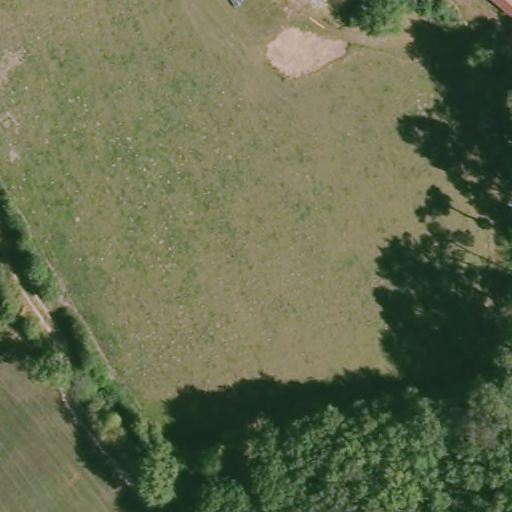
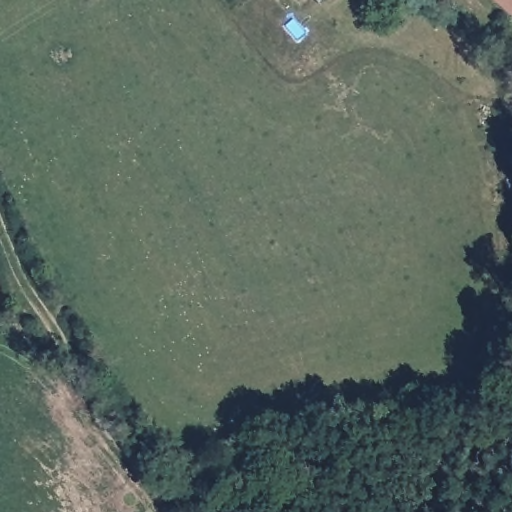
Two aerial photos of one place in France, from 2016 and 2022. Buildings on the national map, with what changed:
unchanged [(313,0),(319,0),(316,3),(313,0)]
unchanged [(499,0),(512,0),(512,12),(499,0)]

